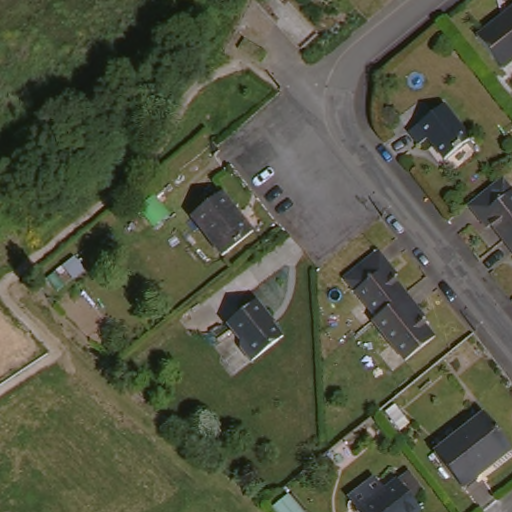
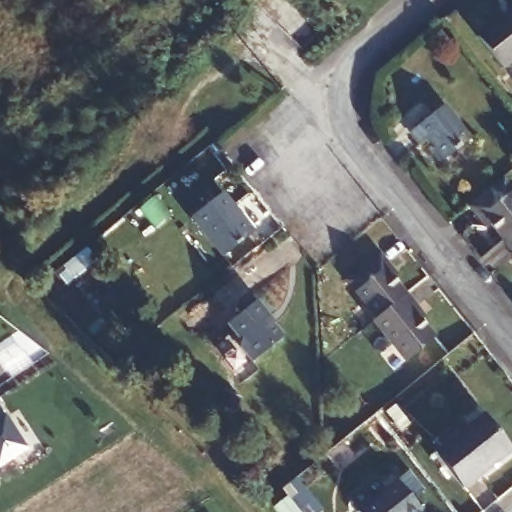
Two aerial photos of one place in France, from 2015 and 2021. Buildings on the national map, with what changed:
unchanged [(500,65),(477,33),(512,6),(512,56),(500,65)]
unchanged [(443,106),(471,142),(444,161),(428,140),(419,146),(409,133),(443,106)]
unchanged [(506,177),(512,184),(512,249),(504,239),(493,224),(488,227),(472,204),(506,177)]
unchanged [(230,195),(261,235),(230,259),(200,221),(230,195)]
unchanged [(381,245),(399,269),(396,271),(408,287),(428,312),(423,316),(436,333),(402,357),(373,318),(377,315),(345,272),(381,245)]
unchanged [(259,292),(273,309),(270,310),(291,336),(254,364),(236,339),(240,335),(234,326),(228,317),(259,292)]
new [(28,447),(14,457),(15,461),(0,470),(0,407),(4,413),(28,447)]
unchanged [(483,412),(509,447),(460,484),(434,450),(483,412)]
unchanged [(394,415),(406,431),(397,438),(385,422),(394,415)]
unchanged [(425,512),(360,512),(346,494),(381,471),(393,489),(408,479),(428,510),(425,512)]
unchanged [(260,508),(273,498),(279,506),(282,504),(289,512),(264,512),(260,508)]

